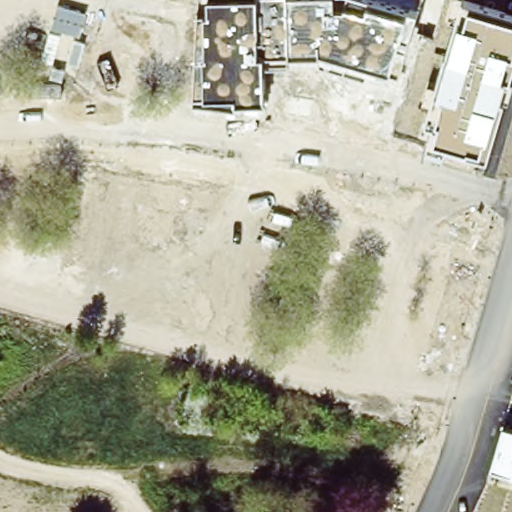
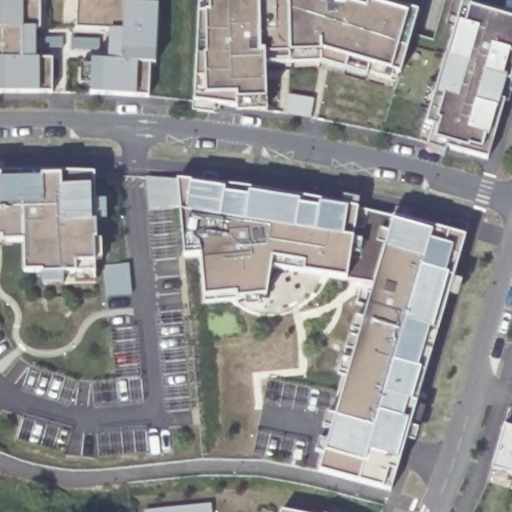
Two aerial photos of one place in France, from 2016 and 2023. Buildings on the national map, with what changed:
new [(35,28),(35,60),(38,59),(53,59),(51,93),(38,91),(0,91),(0,0),(39,0),(40,28),(35,28)]
new [(158,4),(154,63),(150,63),(148,97),(136,96),(88,93),(89,60),(108,60),(109,31),(74,30),(75,0),(149,0),(148,4),(158,4)]
unchanged [(199,0),(378,0),(417,13),(399,73),(391,70),(387,81),(321,62),(264,61),(265,101),(265,111),(237,112),(236,106),(193,100),(198,11),(199,0)]
unchanged [(423,104),(428,84),(436,86),(457,17),(449,16),(453,0),(466,0),(512,14),(512,74),(488,160),(445,149),(443,157),(426,153),(433,124),(426,123),(431,106),(423,104)]
new [(40,275),(23,273),(23,243),(0,244),(0,174),(1,174),(59,174),(94,173),(91,188),(91,222),(99,222),(99,261),(95,262),(95,273),(73,273),(40,275)]
new [(304,272),(269,268),(264,296),(236,298),(203,302),(203,298),(199,257),(183,258),(178,212),(176,180),(189,182),(346,207),(358,209),(351,239),(345,279),(304,272)]
new [(351,239),(358,209),(393,220),(373,283),(345,279),(351,239)]
new [(373,283),(393,220),(427,231),(429,226),(465,236),(406,423),(396,461),(396,472),(386,469),(381,488),(319,470),(324,452),(373,283)]
unchanged [(512,428),(512,475),(490,469),(503,426),(512,428)]
new [(209,503),(210,512),(146,512),(146,510),(209,503)]
new [(281,509),(295,512),(280,512),(281,509)]

